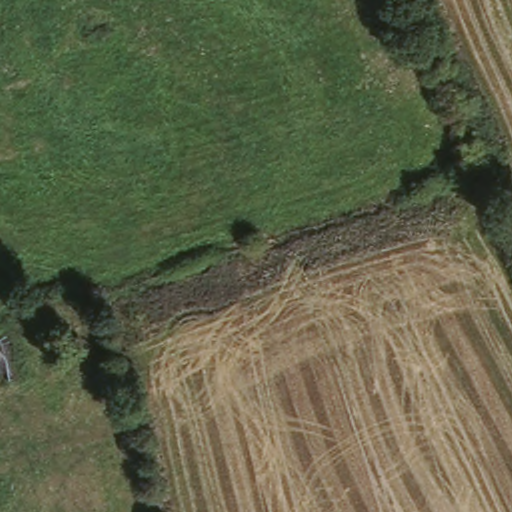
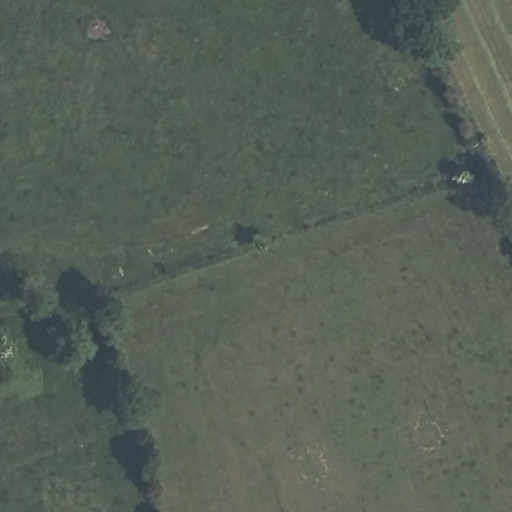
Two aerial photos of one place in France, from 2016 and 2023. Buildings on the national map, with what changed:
unchanged [(8,385),(0,386),(0,330),(8,385)]

